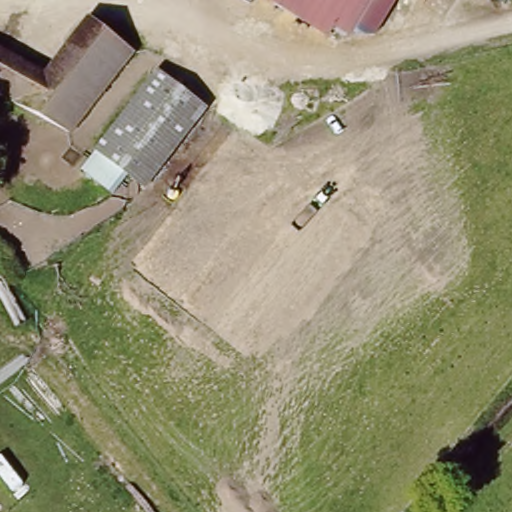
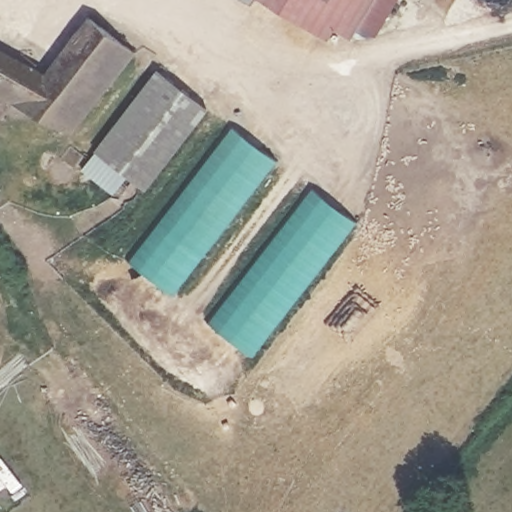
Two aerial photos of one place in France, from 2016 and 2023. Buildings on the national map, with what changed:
unchanged [(257,14),(233,0),(258,0),(262,2),(257,14)]
unchanged [(328,40),(262,2),(258,0),(350,0),(334,29),(328,40)]
unchanged [(355,42),(334,29),(350,0),(400,0),(380,39),(355,42)]
unchanged [(38,67),(81,25),(127,54),(67,127),(0,97),(0,51),(38,67)]
unchanged [(210,112),(145,193),(90,154),(155,72),(210,112)]
new [(170,294),(127,258),(227,123),(275,157),(170,294)]
new [(250,356),(205,320),(310,186),(354,219),(250,356)]

